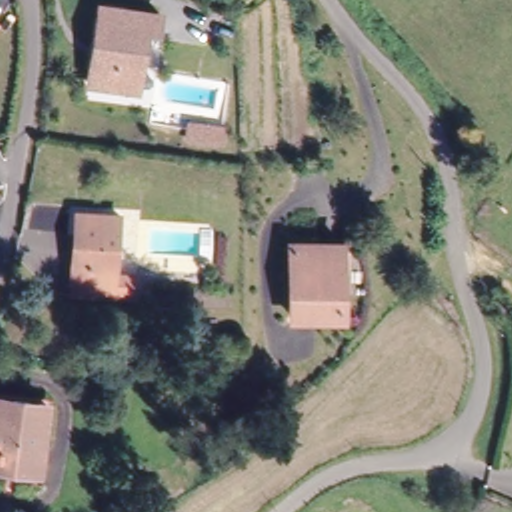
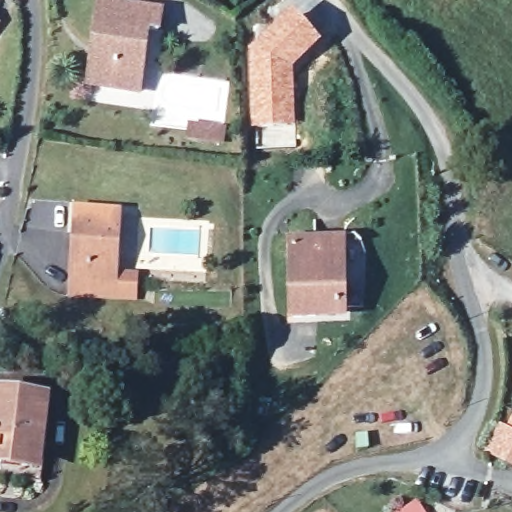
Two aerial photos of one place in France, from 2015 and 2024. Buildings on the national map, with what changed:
unchanged [(82,73),(92,12),(95,0),(143,0),(155,1),(152,22),(137,21),(131,54),(139,54),(135,80),(127,79),(82,73)]
new [(256,147),(254,128),(251,128),(247,49),(294,10),(323,42),(295,69),(296,125),(296,145),(256,147)]
new [(189,120),(226,124),(223,144),(186,138),(189,120)]
unchanged [(71,212),(114,212),(113,285),(68,283),(69,238),(71,212)]
unchanged [(337,270),(337,318),(292,318),(293,250),(348,250),(347,271),(337,270)]
unchanged [(5,386),(41,397),(31,437),(40,440),(32,466),(30,475),(0,467),(0,404),(5,386)]
new [(512,467),(483,452),(499,424),(512,430),(512,467)]

